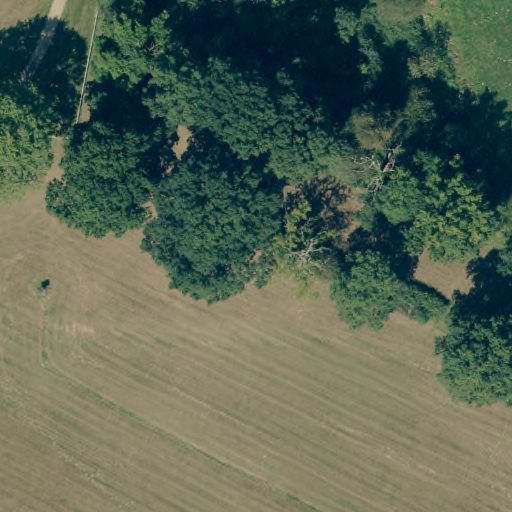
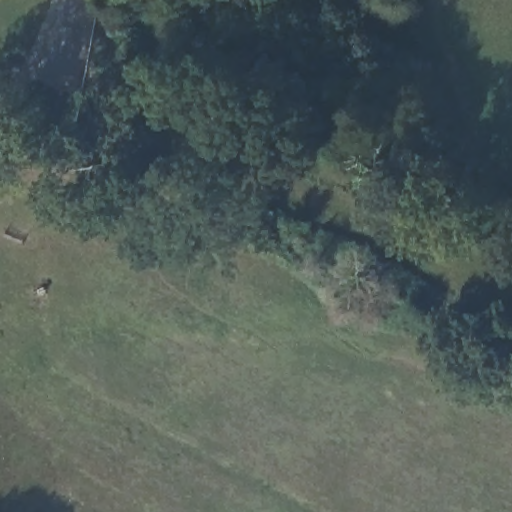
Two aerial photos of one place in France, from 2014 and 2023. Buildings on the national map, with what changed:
[]

